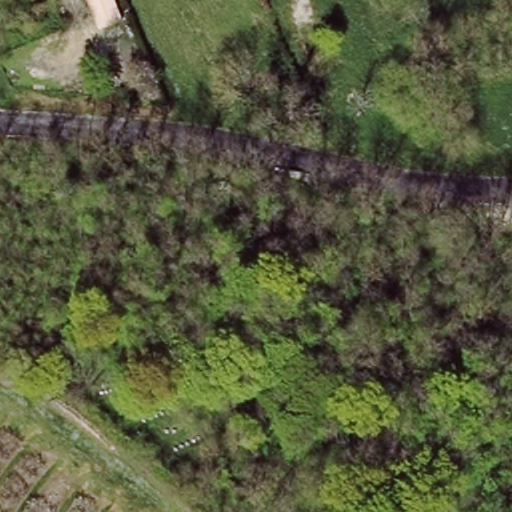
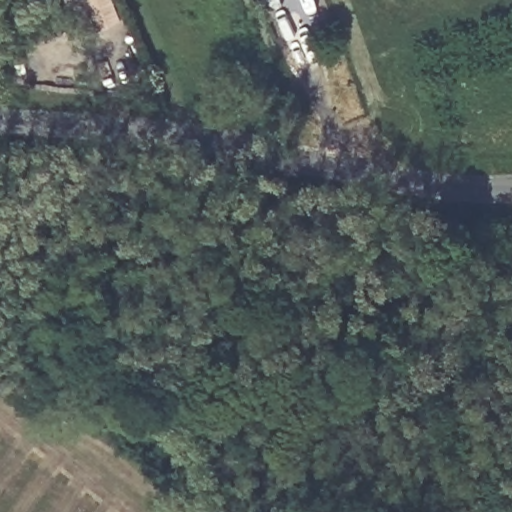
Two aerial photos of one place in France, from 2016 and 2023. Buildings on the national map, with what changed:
unchanged [(114,0),(121,20),(99,30),(88,0),(114,0)]

